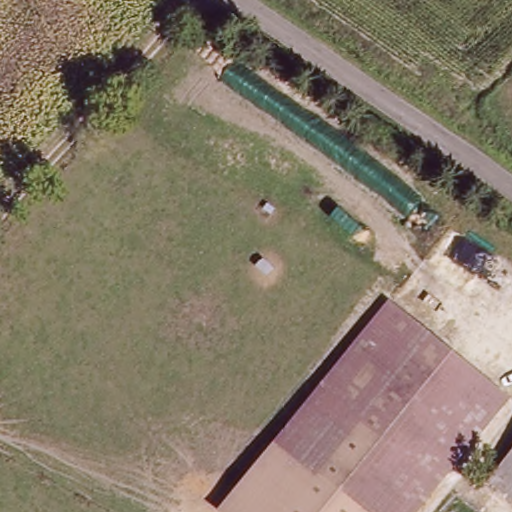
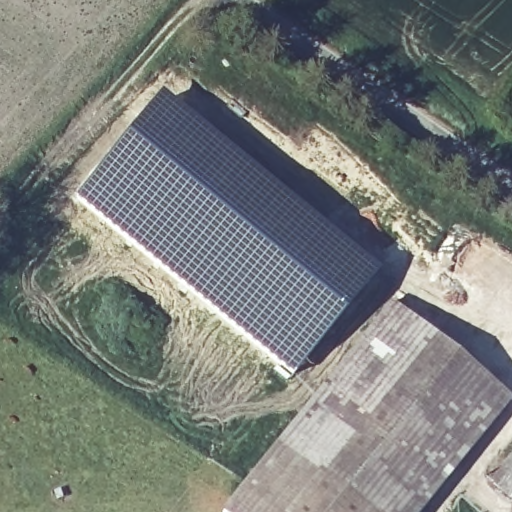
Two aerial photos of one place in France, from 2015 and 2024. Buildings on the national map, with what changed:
new [(159,95),(226,145),(380,271),(303,365),(289,379),(264,356),(126,242),(73,196),(159,95)]
unchanged [(412,512),(241,512),(230,503),(392,310),(504,402),(412,512)]
unchanged [(512,508),(488,486),(512,459),(512,508)]

